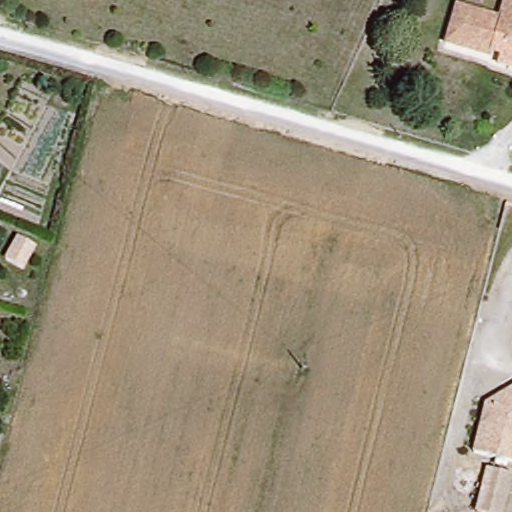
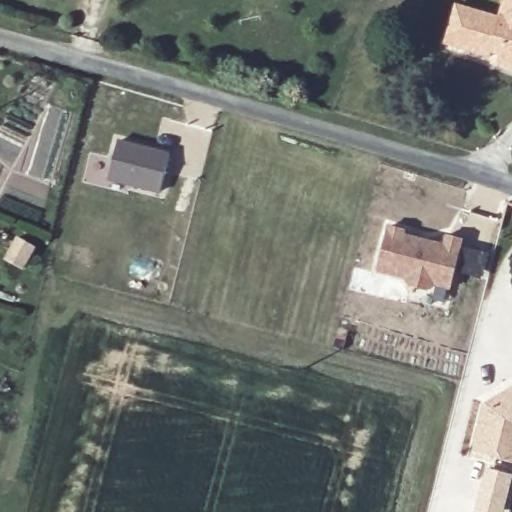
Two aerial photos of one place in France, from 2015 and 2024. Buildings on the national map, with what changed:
unchanged [(494,67),(499,52),(502,47),(488,42),(484,55),(443,40),(456,5),(496,19),(502,0),(512,0),(512,73),(494,67)]
new [(118,139),(170,152),(159,195),(108,182),(118,139)]
new [(388,224),(441,241),(443,233),(464,239),(453,280),(444,302),(433,298),(434,293),(375,272),(388,224)]
unchanged [(34,250),(23,273),(5,264),(18,241),(34,250)]
unchanged [(512,388),(512,426),(504,459),(473,451),(484,403),(512,388)]
unchanged [(512,426),(512,461),(504,459),(512,426)]
unchanged [(487,467),(502,471),(511,473),(501,512),(482,512),(476,510),(487,467)]

